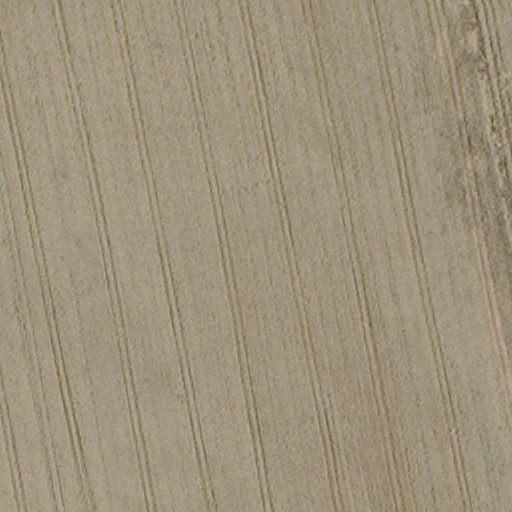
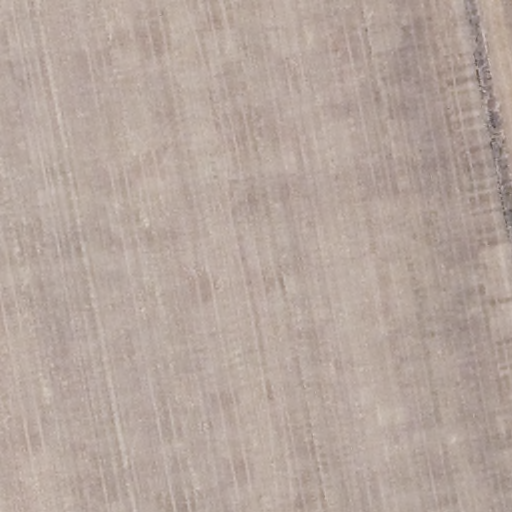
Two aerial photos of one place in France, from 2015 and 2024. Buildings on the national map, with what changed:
[]

